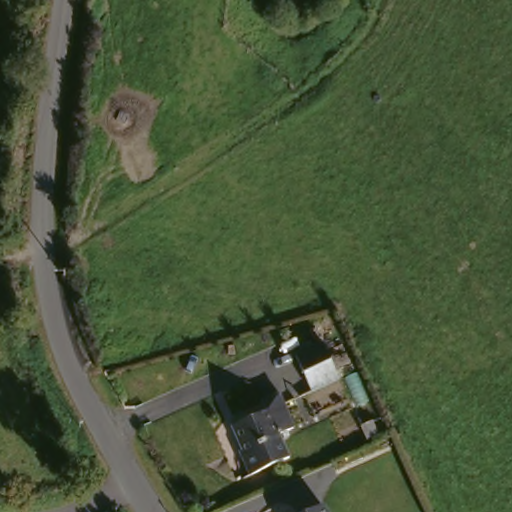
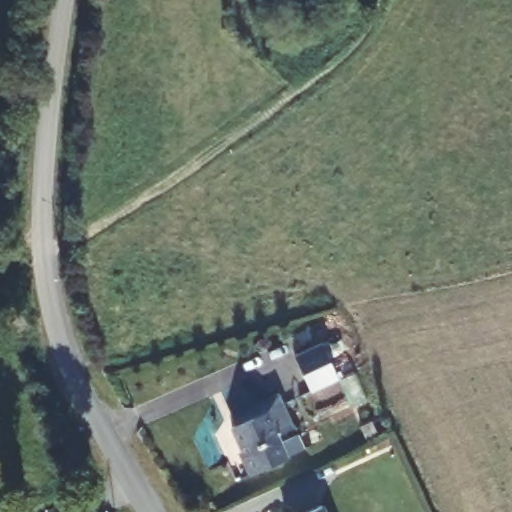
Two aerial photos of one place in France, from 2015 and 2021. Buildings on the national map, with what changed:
unchanged [(318,348),(336,385),(305,398),(288,362),(318,348)]
unchanged [(258,420),(253,407),(274,398),(290,432),(279,437),(287,456),(245,476),(235,455),(241,452),(231,433),(258,420)]
unchanged [(315,502),(321,512),(296,512),(315,502)]

